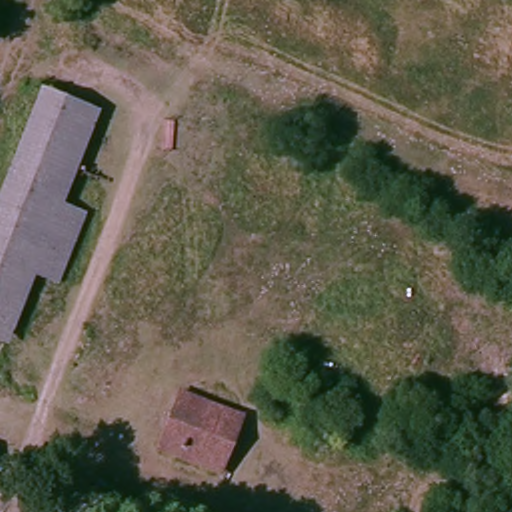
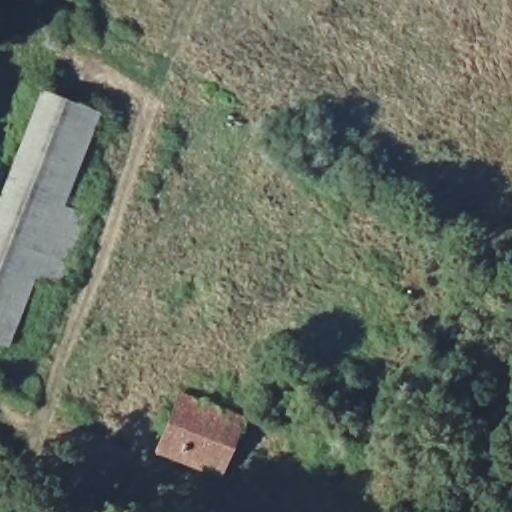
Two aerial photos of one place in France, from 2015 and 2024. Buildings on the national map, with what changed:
unchanged [(23,270),(0,328),(0,205),(47,90),(91,108),(53,201),(82,214),(52,283),(23,270)]
unchanged [(215,472),(159,446),(183,393),(239,419),(215,472)]

